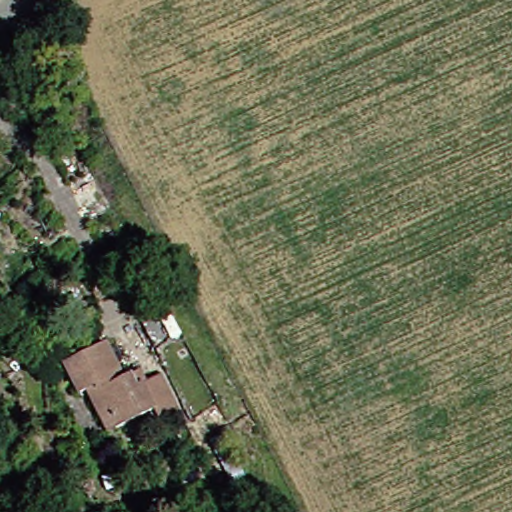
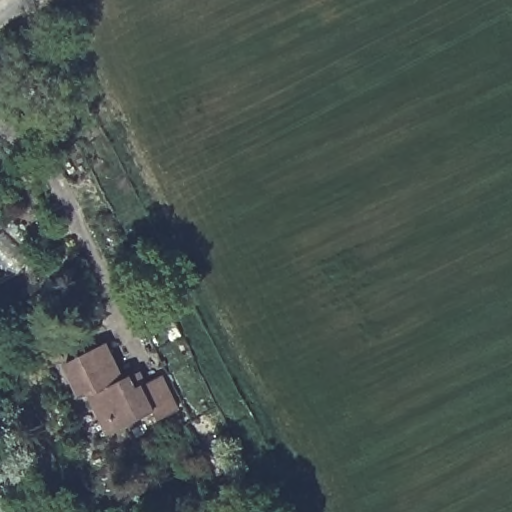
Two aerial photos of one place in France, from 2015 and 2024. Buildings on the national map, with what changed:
unchanged [(92,390),(81,395),(66,364),(107,343),(125,379),(133,374),(140,386),(164,375),(181,408),(161,418),(157,410),(122,428),(114,432),(92,390)]

